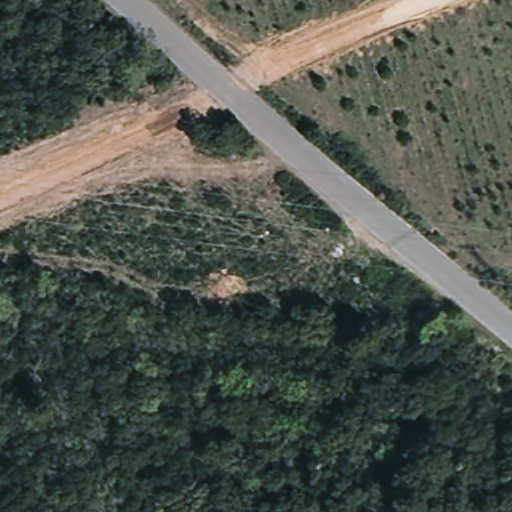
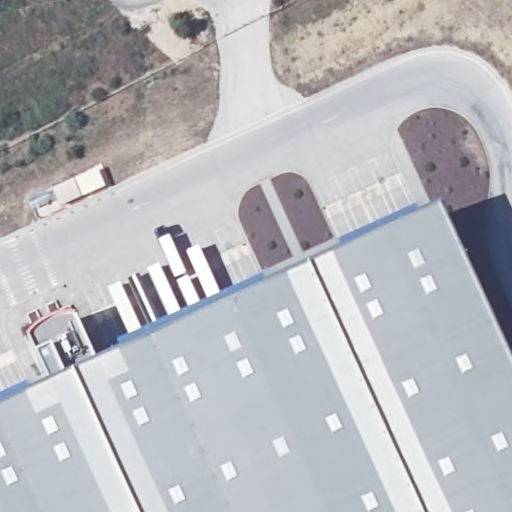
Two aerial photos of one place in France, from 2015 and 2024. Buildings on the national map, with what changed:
new [(37,366),(28,350),(40,337),(50,332),(62,328),(76,328),(98,374),(442,219),(512,372),(512,512),(0,512),(0,420),(51,397),(37,366)]

